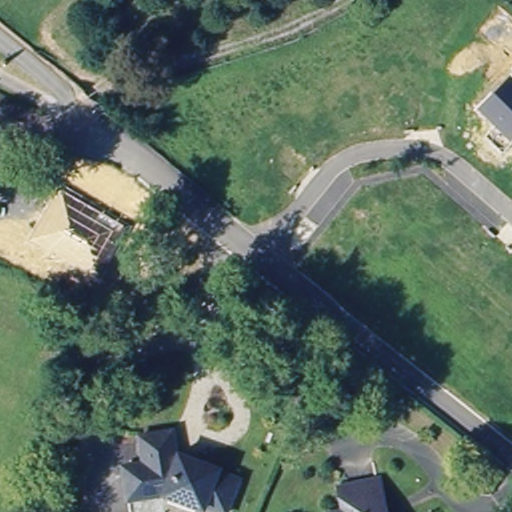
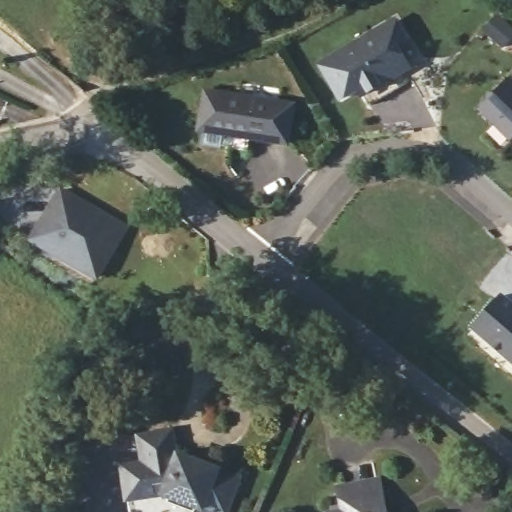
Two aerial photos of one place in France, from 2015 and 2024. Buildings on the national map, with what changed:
new [(363,97),(359,90),(341,101),(318,62),(396,17),(410,39),(400,45),(412,69),(363,97)]
unchanged [(512,77),(512,140),(477,109),(510,75),(512,77)]
new [(197,132),(204,88),(294,102),(289,148),(197,132)]
unchanged [(129,227),(100,281),(26,241),(56,186),(129,227)]
new [(502,295),(512,304),(512,362),(475,329),(502,295)]
unchanged [(176,426),(180,448),(223,464),(222,465),(243,473),(230,508),(209,500),(205,512),(184,512),(170,507),(144,512),(136,512),(127,462),(148,460),(144,431),(176,426)]
unchanged [(339,507),(356,506),(355,480),(391,479),(394,512),(340,512),(339,507)]

